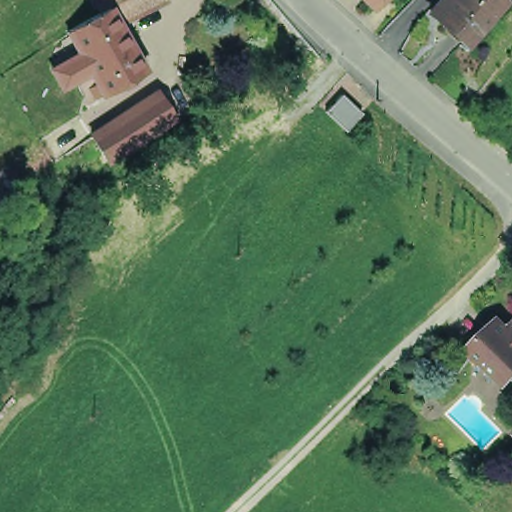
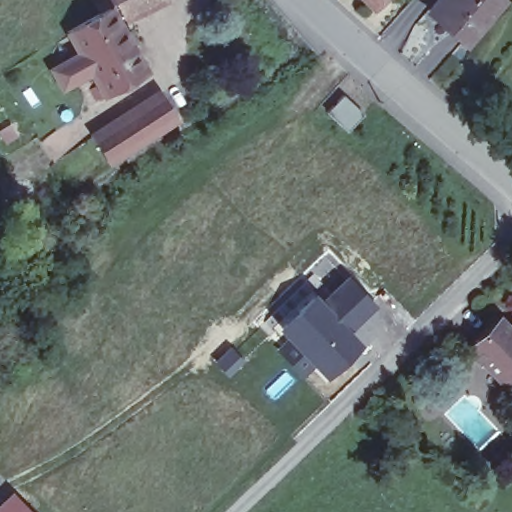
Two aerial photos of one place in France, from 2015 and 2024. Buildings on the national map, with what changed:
unchanged [(71,25),(105,5),(103,0),(113,0),(114,0),(142,0),(127,7),(120,11),(151,65),(101,94),(95,83),(103,78),(94,65),(81,72),(71,55),(84,46),(71,25)]
unchanged [(365,0),(381,0),(374,8),(365,0)]
unchanged [(499,0),(502,3),(466,45),(429,12),(440,0),(499,0)]
unchanged [(347,125),(327,107),(343,90),(363,109),(347,125)]
unchanged [(170,113),(148,129),(121,147),(109,130),(137,112),(159,97),(170,113)]
new [(344,356),(326,375),(281,327),(311,297),(319,305),(346,280),(371,305),(344,331),(352,339),(357,345),(344,356)]
unchanged [(503,375),(484,357),(477,357),(468,344),(498,314),(509,325),(512,322),(512,375),(508,380),(503,375)]
new [(289,335),(316,363),(301,377),(274,348),(289,335)]
new [(31,512),(0,512),(0,506),(13,494),(31,512)]

